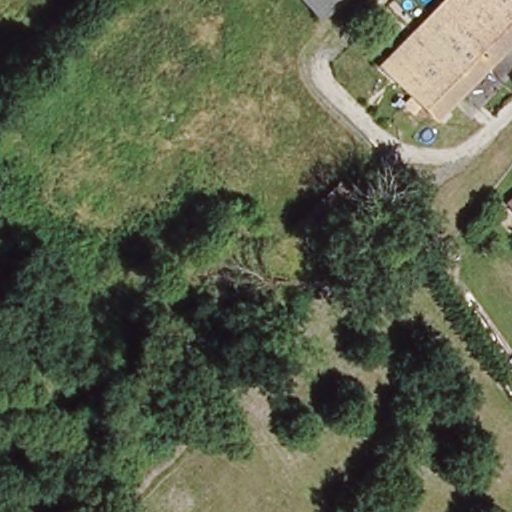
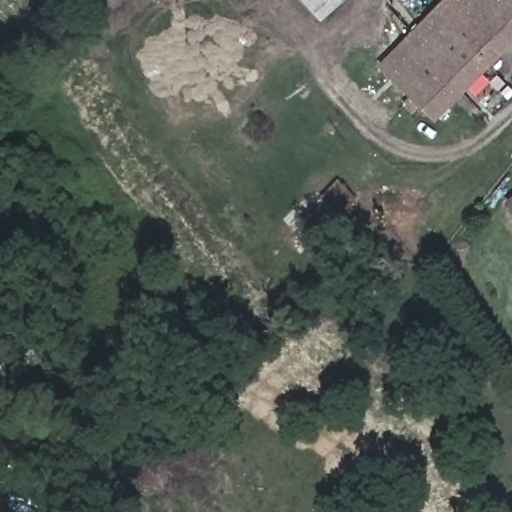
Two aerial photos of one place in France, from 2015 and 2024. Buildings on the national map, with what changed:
unchanged [(337,0),(320,15),(306,0),(337,0)]
unchanged [(380,63),(443,0),(512,0),(512,36),(433,115),(420,103),(412,111),(403,102),(412,94),(380,63)]
unchanged [(353,200),(308,244),(291,227),(337,183),(353,200)]
unchanged [(512,193),(512,213),(502,201),(512,193)]

